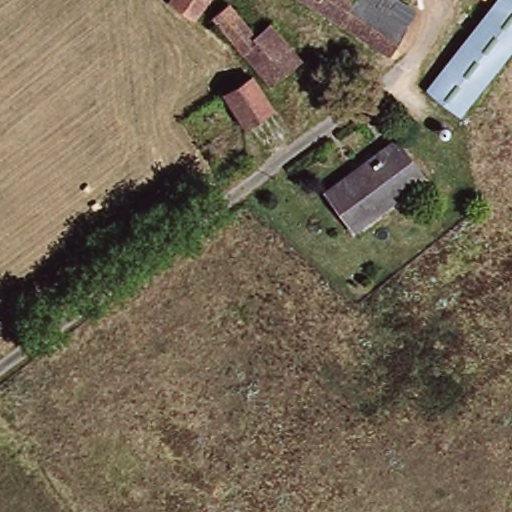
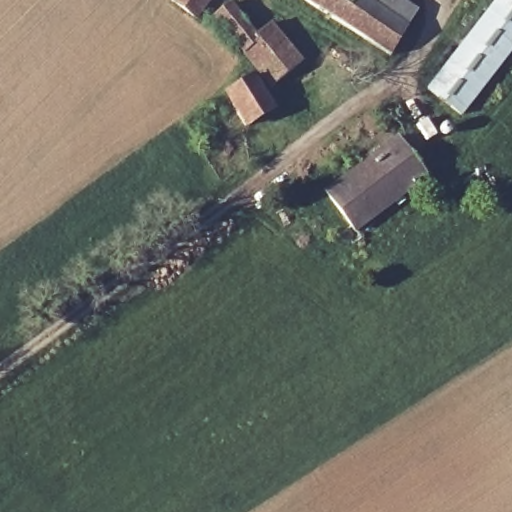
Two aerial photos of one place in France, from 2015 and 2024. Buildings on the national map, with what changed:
unchanged [(209,0),(195,19),(170,2),(171,0),(209,0)]
unchanged [(230,0),(267,46),(280,36),(302,64),(269,89),(210,13),(227,0),(230,0)]
unchanged [(388,56),(302,0),(403,0),(412,6),(400,35),(388,56)]
unchanged [(435,88),(499,0),(512,0),(512,53),(469,112),(435,88)]
unchanged [(267,109),(243,124),(222,92),(250,76),(267,109)]
unchanged [(356,232),(328,196),(396,143),(424,180),(356,232)]

